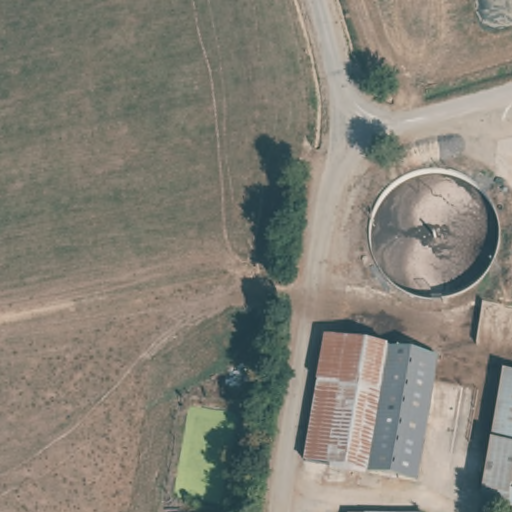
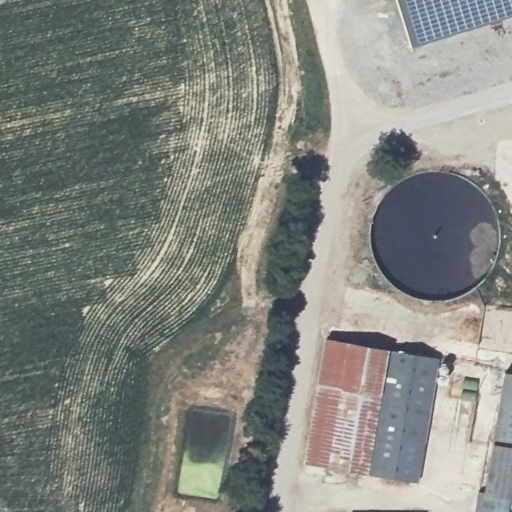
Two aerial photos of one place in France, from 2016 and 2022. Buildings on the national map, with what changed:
new [(411,47),(396,0),(512,0),(512,16),(411,47)]
unchanged [(392,350),(368,473),(303,462),(323,338),(392,350)]
unchanged [(435,358),(414,481),(368,473),(392,350),(435,358)]
unchanged [(507,382),(512,383),(512,512),(486,512),(489,492),(505,398),(507,382)]
unchanged [(479,411),(478,403),(477,392),(482,392),(480,402),(479,411)]

